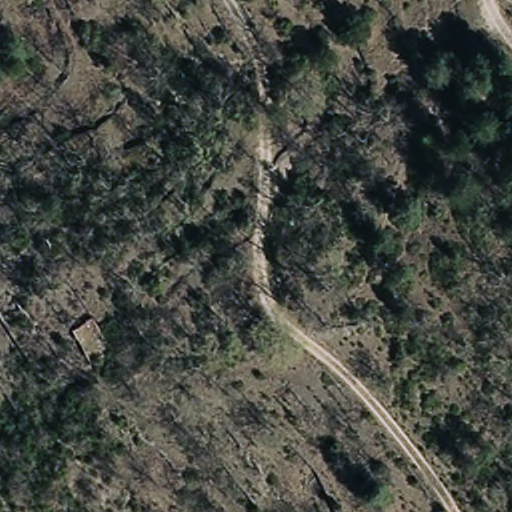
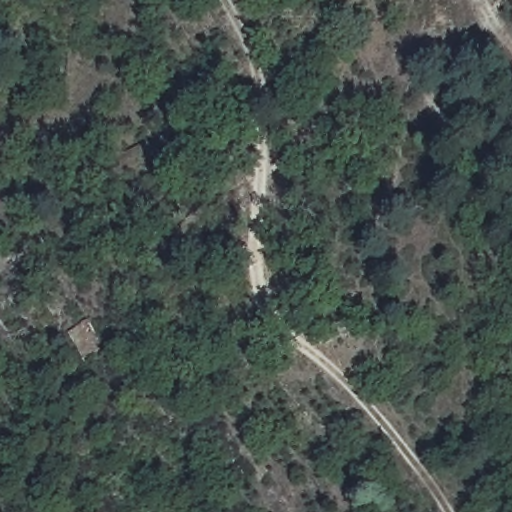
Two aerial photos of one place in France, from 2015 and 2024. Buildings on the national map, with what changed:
unchanged [(88,317),(106,353),(86,365),(70,331),(88,317)]

